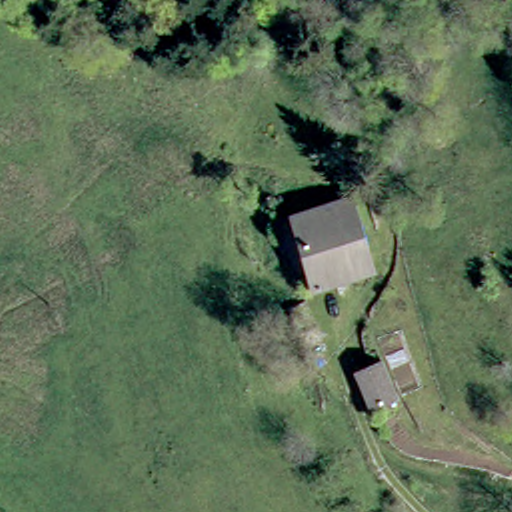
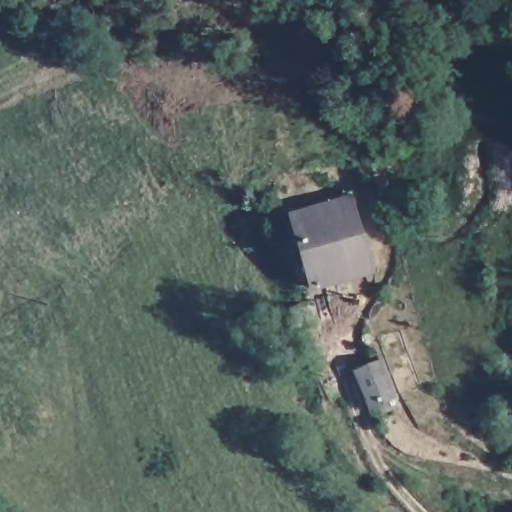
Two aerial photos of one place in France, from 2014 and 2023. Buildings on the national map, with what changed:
unchanged [(362,272),(310,289),(286,218),(339,200),(355,194),(368,228),(351,234),(364,268),(362,272)]
unchanged [(300,337),(293,314),(309,310),(316,332),(300,337)]
unchanged [(357,403),(345,377),(369,362),(372,360),(387,391),(389,397),(367,409),(365,406),(357,403)]

